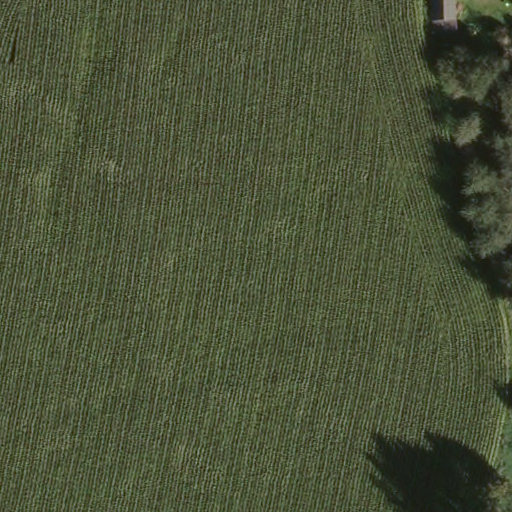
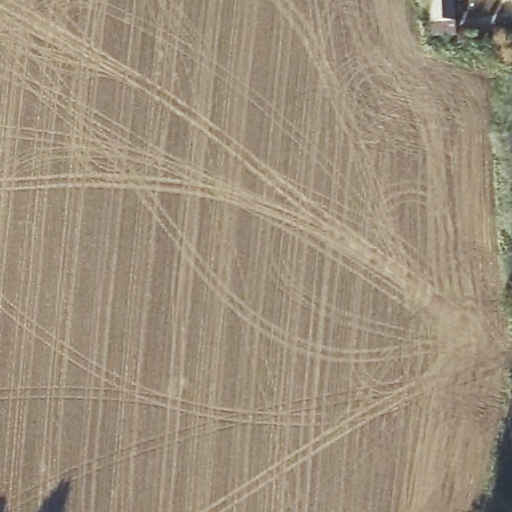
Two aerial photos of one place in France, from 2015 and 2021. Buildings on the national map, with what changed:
unchanged [(456,26),(436,28),(434,1),(442,0),(451,0),(456,26)]

